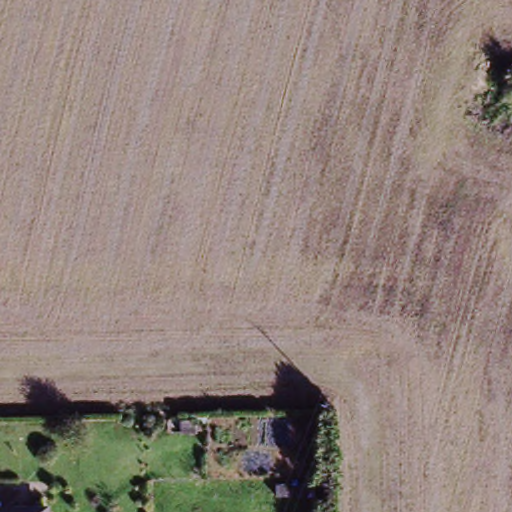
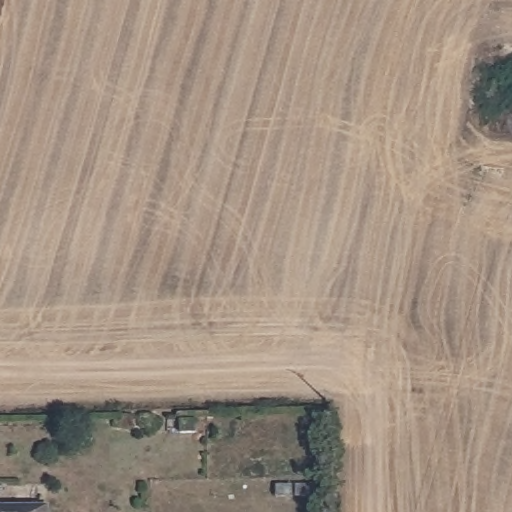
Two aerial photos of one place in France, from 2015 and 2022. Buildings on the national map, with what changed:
unchanged [(53,512),(0,512),(0,507),(53,507),(53,512)]

